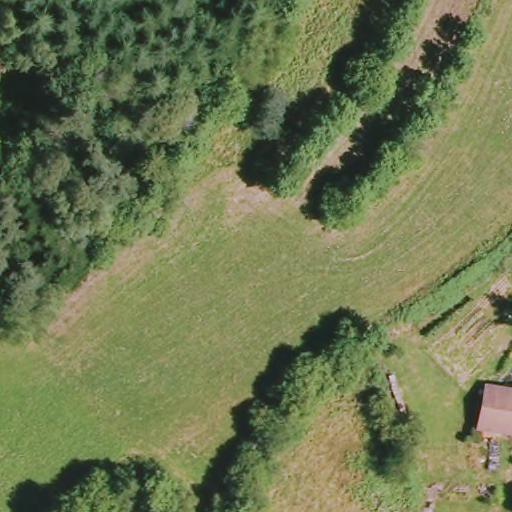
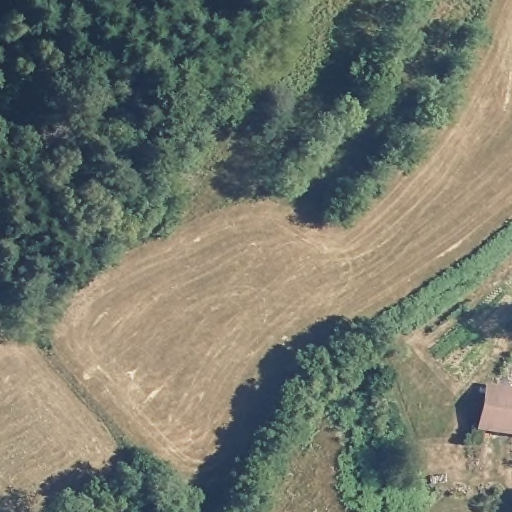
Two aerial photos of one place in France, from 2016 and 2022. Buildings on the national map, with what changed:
unchanged [(486,431),(486,388),(512,392),(512,434),(486,431)]

